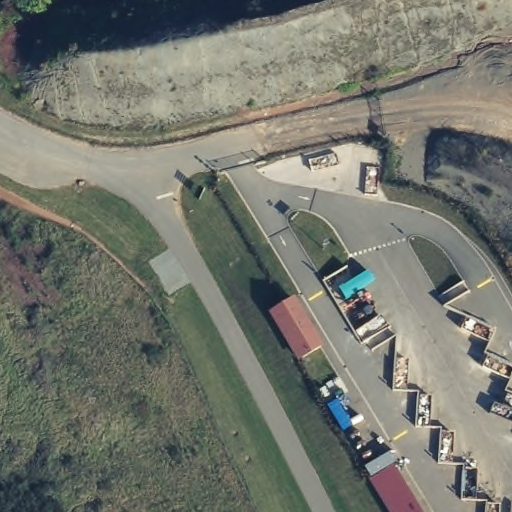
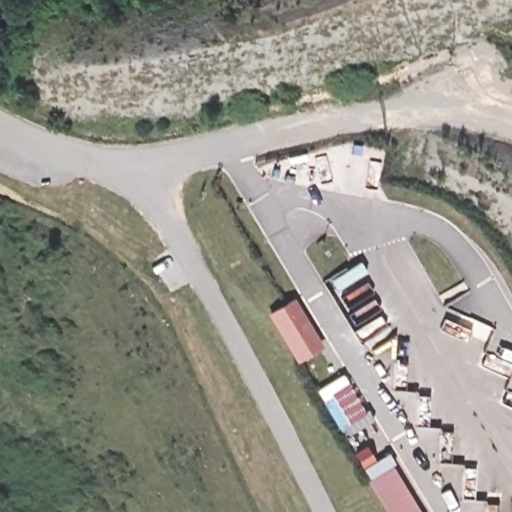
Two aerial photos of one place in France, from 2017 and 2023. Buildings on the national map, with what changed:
unchanged [(320,345),(295,361),(265,311),(292,297),(320,345)]
unchanged [(385,512),(365,479),(389,465),(418,512),(385,512)]

